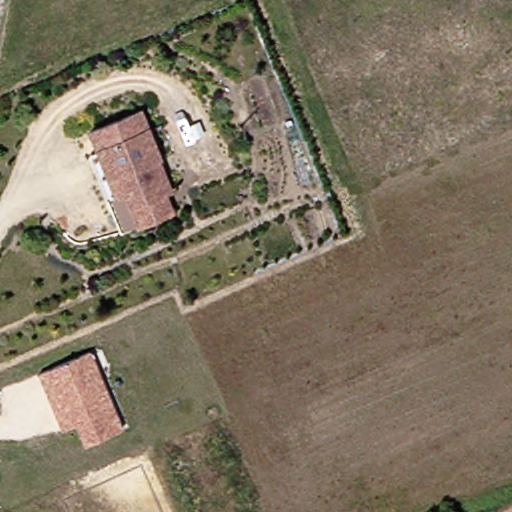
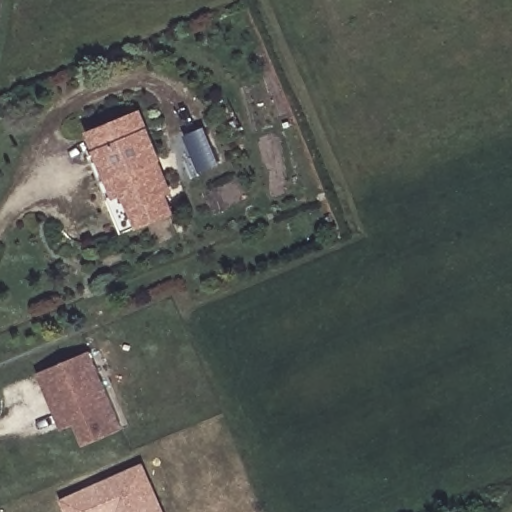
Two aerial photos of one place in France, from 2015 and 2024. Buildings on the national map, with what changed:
unchanged [(131,202),(125,186),(117,190),(99,145),(90,125),(140,105),(161,157),(159,158),(170,186),(163,188),(131,202)]
unchanged [(172,207),(120,227),(90,149),(99,145),(117,190),(125,186),(131,202),(163,188),(172,207)]
unchanged [(118,428),(86,444),(60,384),(45,392),(37,372),(87,352),(118,428)]
new [(164,512),(69,512),(65,500),(143,465),(164,512)]

